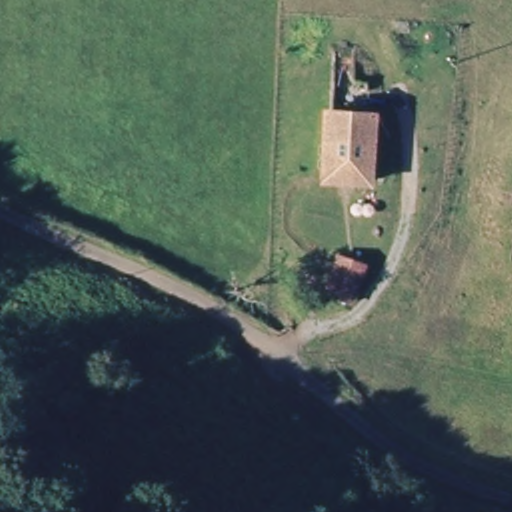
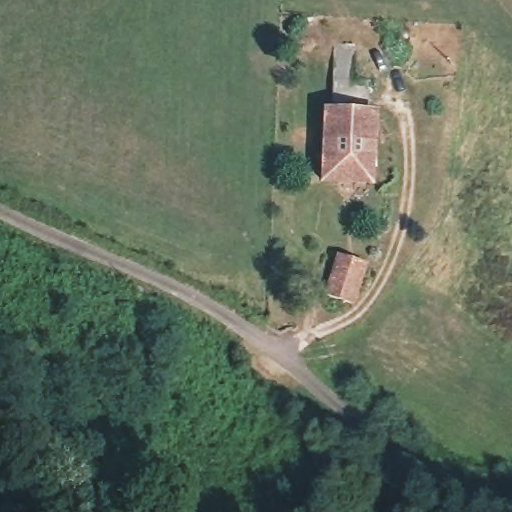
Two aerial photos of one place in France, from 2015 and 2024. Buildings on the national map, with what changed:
unchanged [(330,107),(378,110),(372,180),(325,176),(330,107)]
unchanged [(330,301),(338,262),(370,269),(360,308),(330,301)]

